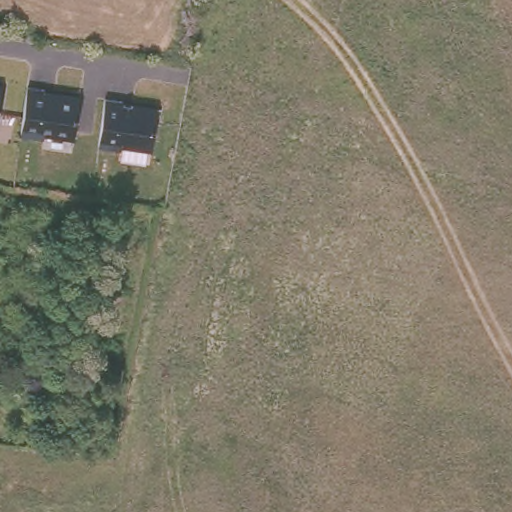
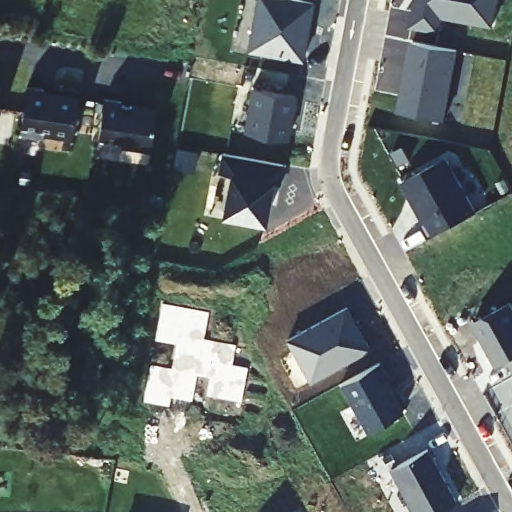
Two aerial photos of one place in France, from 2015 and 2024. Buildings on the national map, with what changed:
new [(314,0),(303,62),(248,51),(257,0),(311,0),(314,0)]
new [(415,0),(498,0),(492,27),(443,19),(439,33),(410,27),(415,0)]
new [(457,50),(443,120),(398,111),(401,95),(403,96),(413,42),(457,50)]
unchanged [(20,86),(75,94),(68,140),(16,132),(20,86)]
new [(253,86),(298,95),(290,139),(245,130),(253,86)]
unchanged [(101,96),(155,102),(148,153),(95,145),(101,96)]
new [(262,222),(224,215),(232,177),(230,174),(219,172),(222,153),(279,163),(276,179),(262,222)]
new [(446,158),(477,213),(430,239),(421,225),(427,221),(418,207),(416,208),(402,182),(446,158)]
new [(497,367),(473,323),(511,302),(512,303),(512,364),(510,361),(497,367)]
new [(161,303),(209,312),(203,338),(236,345),(232,365),(248,368),(241,403),(206,396),(210,379),(197,376),(192,402),(172,397),(170,407),(143,402),(150,364),(171,368),(176,345),(155,340),(161,303)]
new [(370,350),(310,382),(286,338),(347,306),(370,350)]
new [(341,384),(380,363),(406,410),(367,432),(341,384)]
new [(457,502),(439,512),(415,512),(390,468),(428,448),(457,502)]
new [(442,512),(438,512),(441,510),(442,512)]

